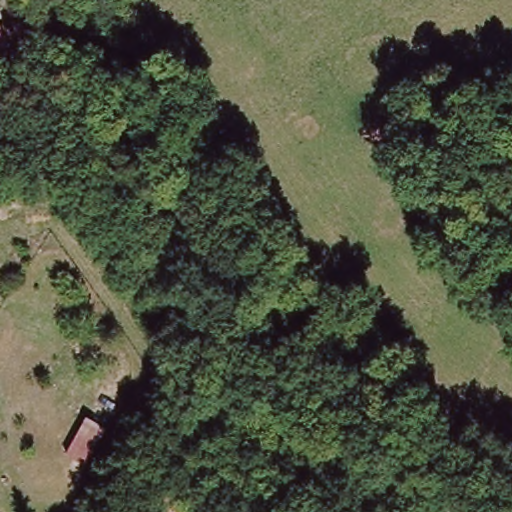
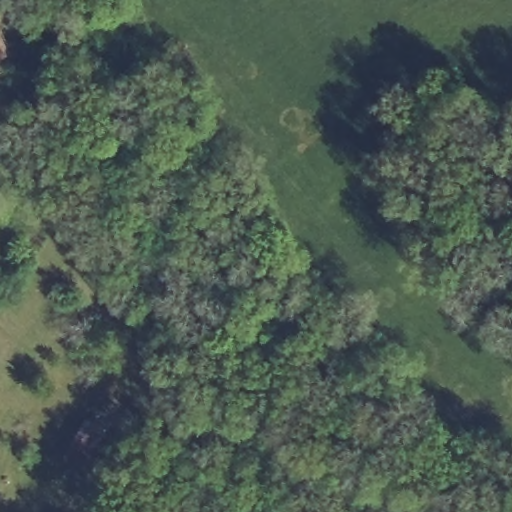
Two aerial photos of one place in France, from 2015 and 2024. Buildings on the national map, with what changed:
unchanged [(0,24),(0,13),(5,19),(0,24)]
unchanged [(0,31),(15,60),(0,69),(0,31)]
unchanged [(61,446),(82,412),(101,423),(80,457),(61,446)]
unchanged [(175,512),(148,512),(160,489),(180,500),(175,512)]

